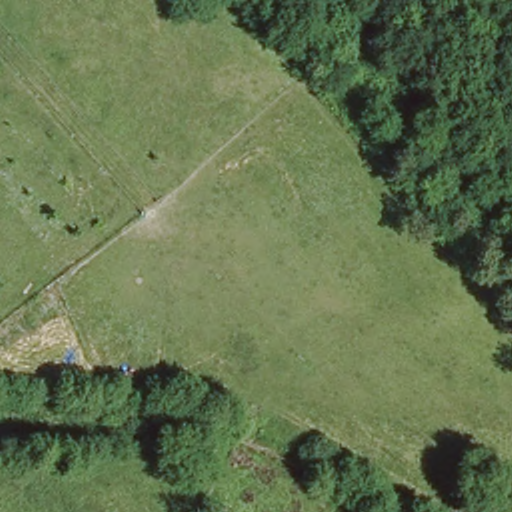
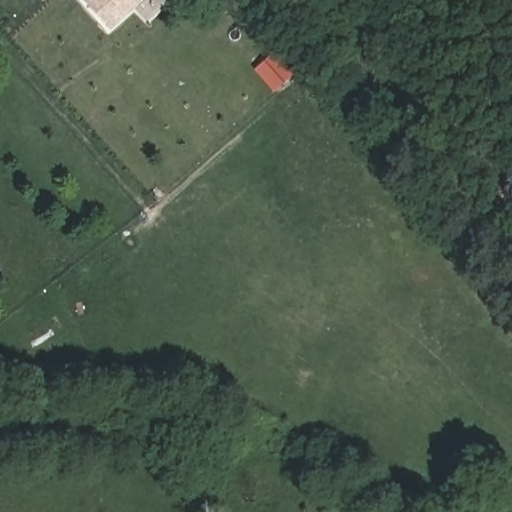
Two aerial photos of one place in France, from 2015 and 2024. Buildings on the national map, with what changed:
new [(110,31),(82,0),(144,0),(110,31)]

